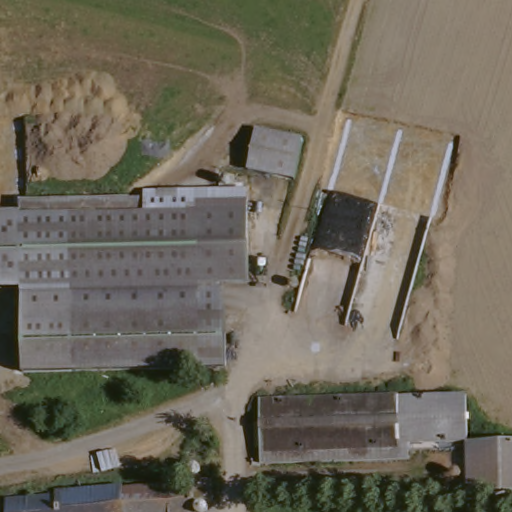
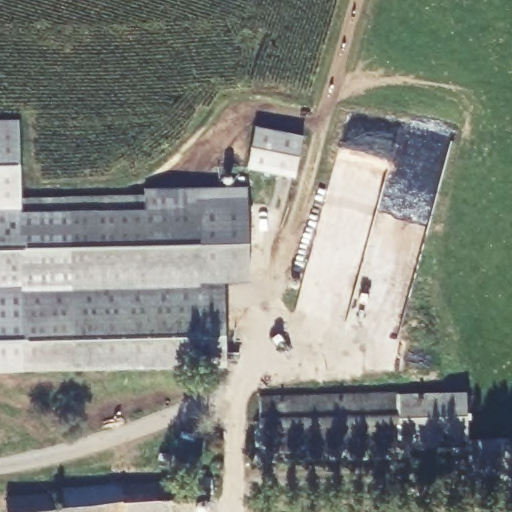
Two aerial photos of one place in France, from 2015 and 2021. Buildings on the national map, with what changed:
new [(0,217),(0,121),(19,121),(20,207),(20,216),(0,217)]
unchanged [(301,144),(292,168),(287,183),(281,181),(242,168),(256,128),(293,141),(301,144)]
unchanged [(20,207),(187,198),(187,206),(246,202),(249,285),(224,288),(227,369),(24,378),(22,291),(0,292),(0,217),(20,216),(20,207)]
new [(24,378),(0,377),(0,292),(22,291),(24,378)]
unchanged [(467,393),(469,438),(469,447),(449,447),(411,448),(411,463),(256,469),(255,422),(259,421),(260,399),(467,393)]
unchanged [(449,447),(469,447),(469,438),(512,437),(512,497),(452,499),(449,447)]
unchanged [(7,504),(59,499),(58,495),(120,488),(120,493),(191,485),(195,485),(208,484),(211,508),(196,510),(197,512),(0,512),(0,508),(7,507),(7,504)]

